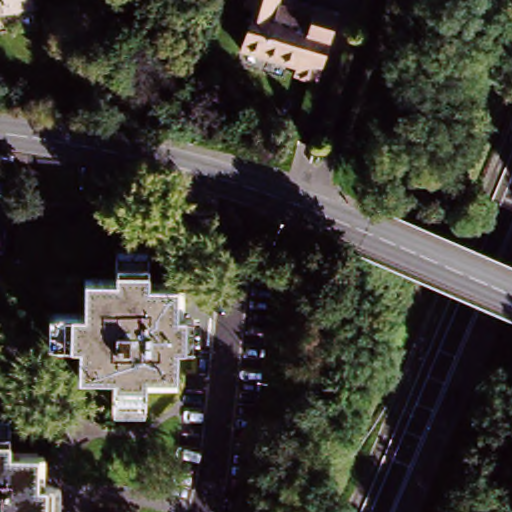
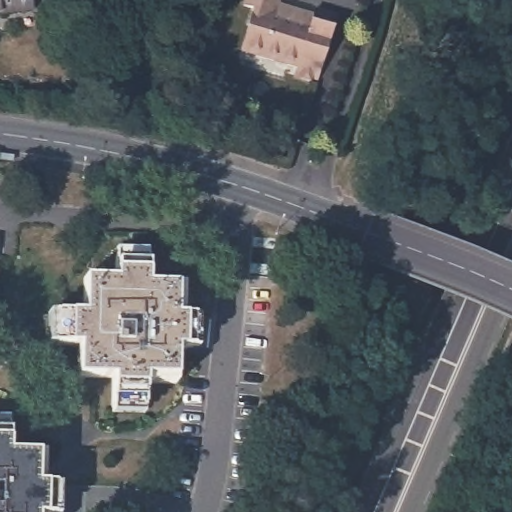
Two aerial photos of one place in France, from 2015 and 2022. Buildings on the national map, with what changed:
unchanged [(27,17),(0,21),(0,0),(24,0),(27,17)]
unchanged [(321,14),(341,20),(327,69),(308,62),(305,72),(248,55),(260,12),(250,9),(253,0),(285,0),(282,9),(319,20),(321,14)]
unchanged [(178,347),(176,382),(146,381),(146,397),(117,395),(118,373),(85,371),(87,343),(60,341),(62,307),(86,308),(87,273),(119,275),(120,266),(151,268),(151,282),(181,283),(180,315),(190,316),(188,332),(187,347),(178,347)]
unchanged [(5,457),(33,458),(31,489),(43,490),(42,507),(42,512),(0,512),(0,444),(6,445),(5,457)]

